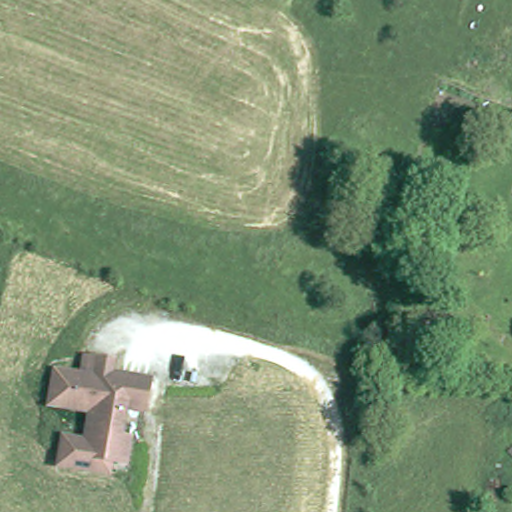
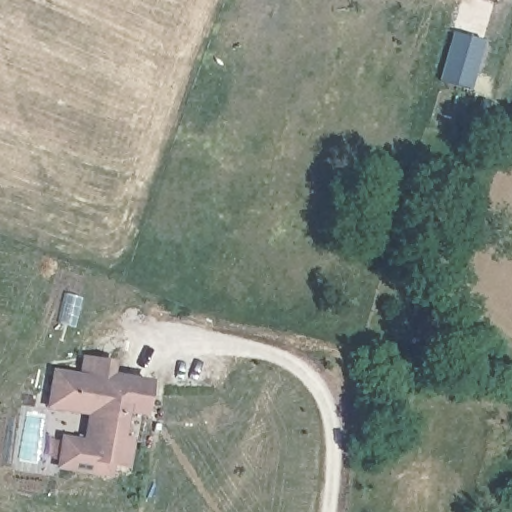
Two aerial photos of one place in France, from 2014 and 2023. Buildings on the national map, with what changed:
new [(452,33),(482,43),(470,91),(438,82),(452,33)]
unchanged [(61,468),(64,440),(86,442),(90,413),(48,409),(51,374),(78,377),(80,359),(96,361),(108,362),(107,374),(146,378),(143,409),(140,439),(135,439),(133,463),(128,463),(113,461),(112,473),(76,469),(61,468)]

